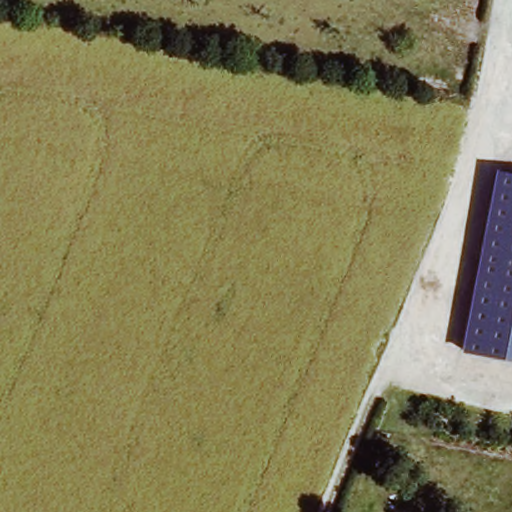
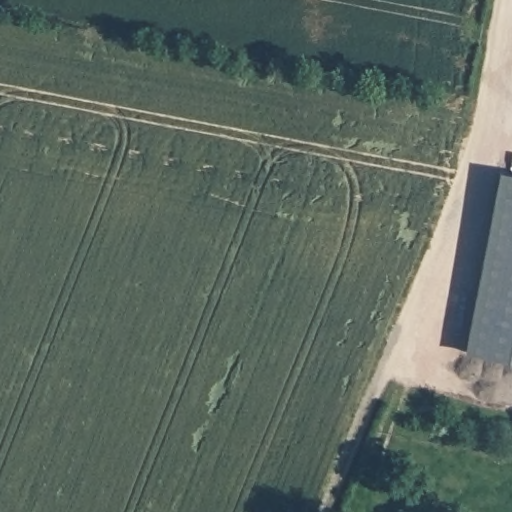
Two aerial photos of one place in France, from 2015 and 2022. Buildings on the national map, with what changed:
unchanged [(512,174),(512,361),(463,351),(502,171),(512,174)]

